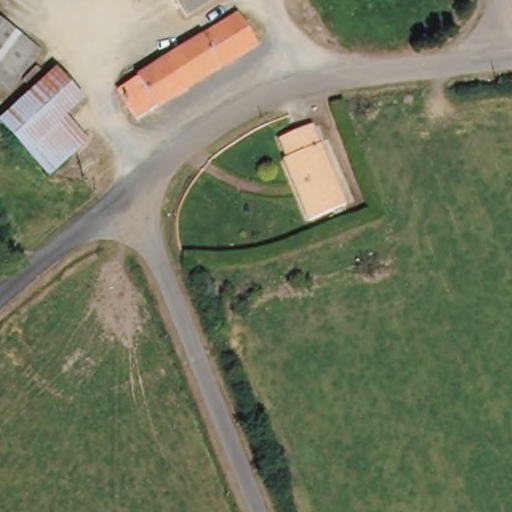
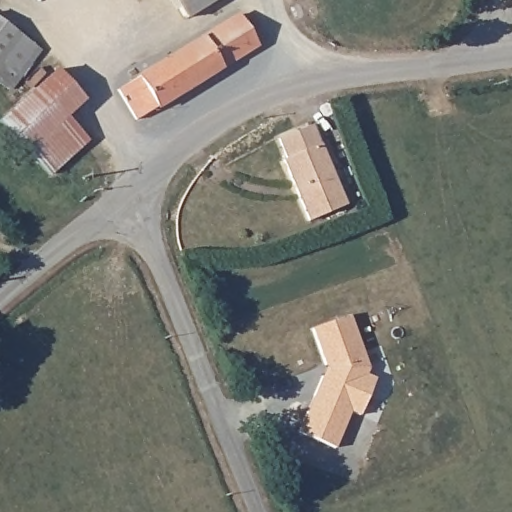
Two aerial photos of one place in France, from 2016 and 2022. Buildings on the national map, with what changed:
unchanged [(189,14),(180,0),(211,0),(189,14)]
unchanged [(120,87),(172,54),(175,52),(180,49),(244,11),(263,43),(191,85),(141,117),(120,87)]
unchanged [(11,94),(0,87),(0,21),(41,54),(11,94)]
unchanged [(6,121),(63,75),(86,102),(66,119),(29,149),(6,121)]
unchanged [(90,146),(51,176),(29,149),(66,119),(90,146)]
unchanged [(294,161),(283,140),(317,125),(348,205),(314,219),(289,163),(294,161)]
new [(369,373),(375,377),(359,414),(350,411),(334,449),(297,435),(326,364),(312,328),(348,315),(369,373)]

